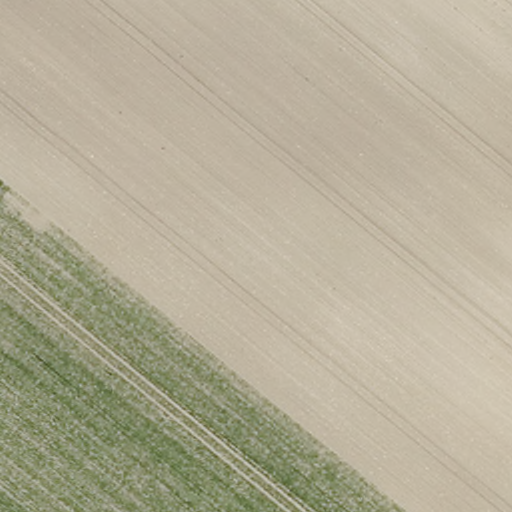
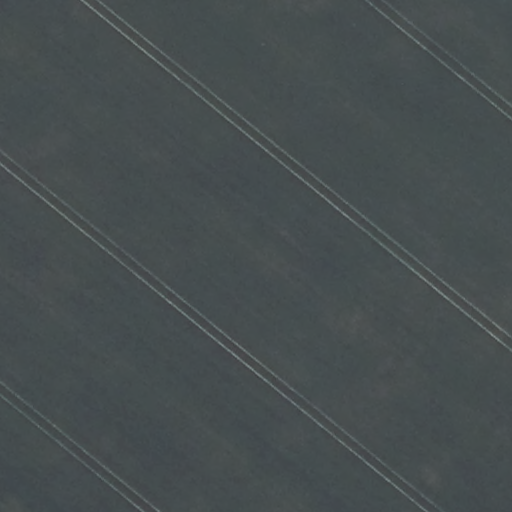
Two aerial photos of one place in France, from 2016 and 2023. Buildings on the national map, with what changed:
[]

